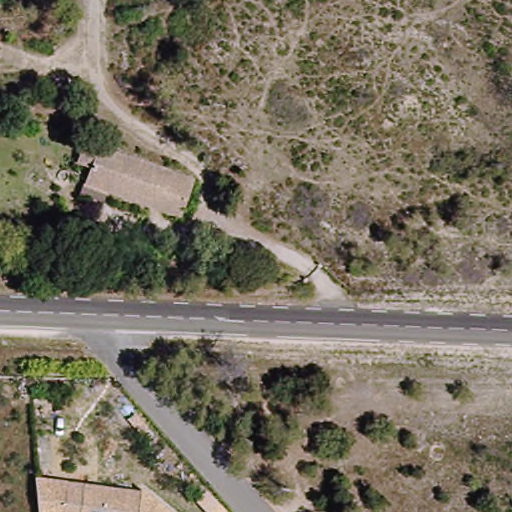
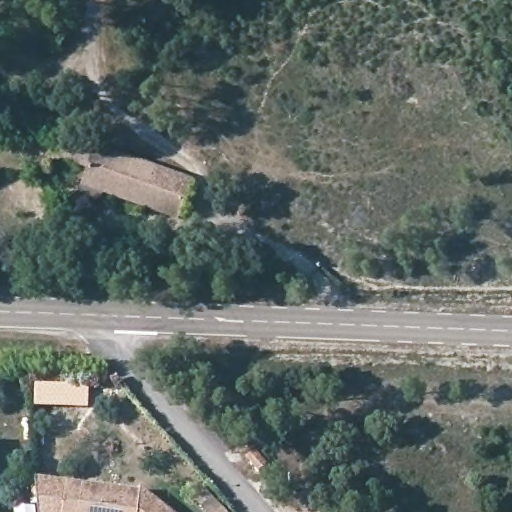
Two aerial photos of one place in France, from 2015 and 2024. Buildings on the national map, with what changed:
unchanged [(103,150),(198,184),(184,221),(91,186),(101,154),(103,150)]
new [(89,410),(34,407),(35,385),(90,386),(89,410)]
unchanged [(69,488),(67,512),(40,512),(37,485),(69,488)]
unchanged [(143,496),(144,493),(169,512),(67,512),(69,488),(143,496)]

